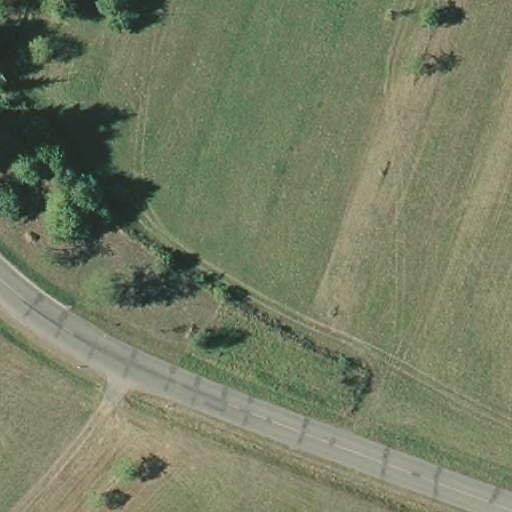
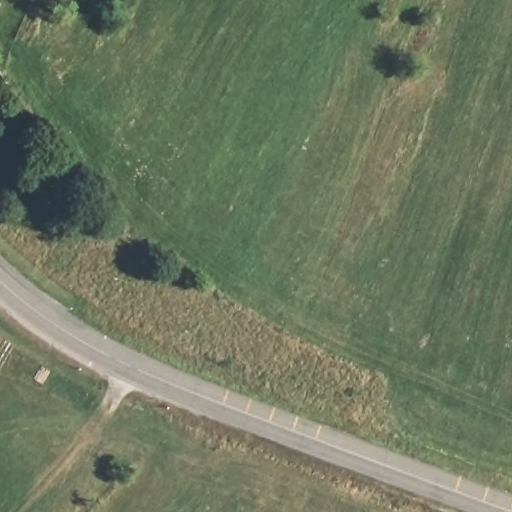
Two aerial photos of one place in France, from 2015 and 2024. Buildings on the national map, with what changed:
[]

